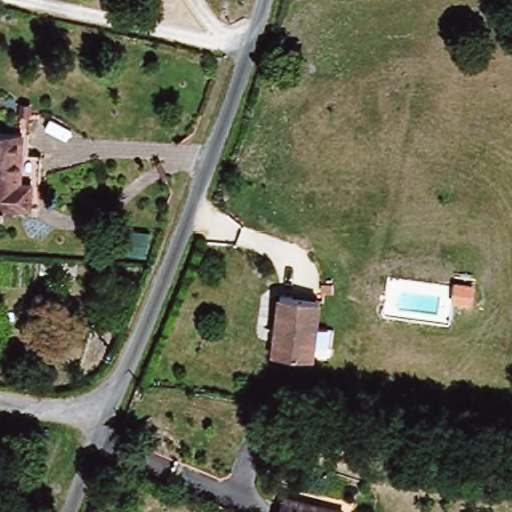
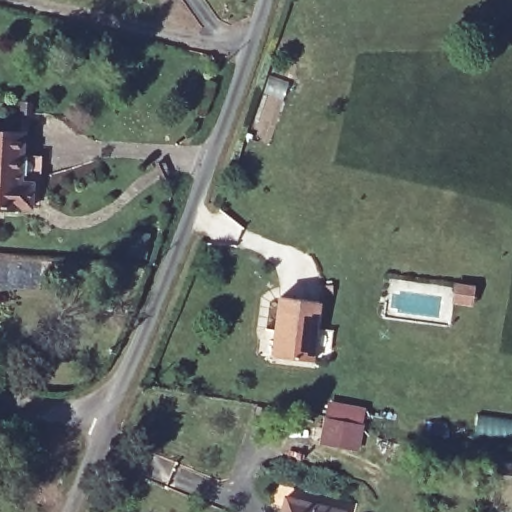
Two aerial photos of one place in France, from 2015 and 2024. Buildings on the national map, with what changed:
unchanged [(23,202),(22,207),(0,205),(0,133),(28,136),(26,177),(38,179),(38,202),(23,202)]
unchanged [(283,293),(326,297),(317,357),(274,354),(283,293)]
new [(326,400),(366,407),(359,452),(318,445),(326,400)]
unchanged [(290,496),(350,512),(287,512),(290,496)]

